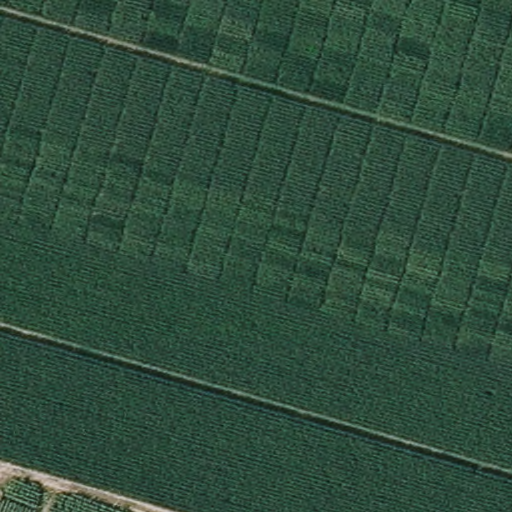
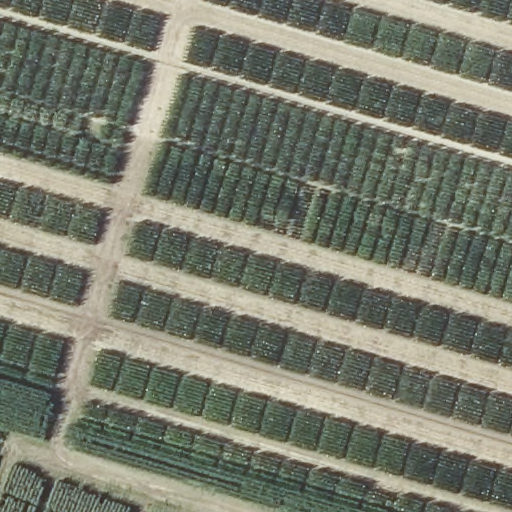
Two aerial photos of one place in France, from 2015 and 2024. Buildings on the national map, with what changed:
[]

